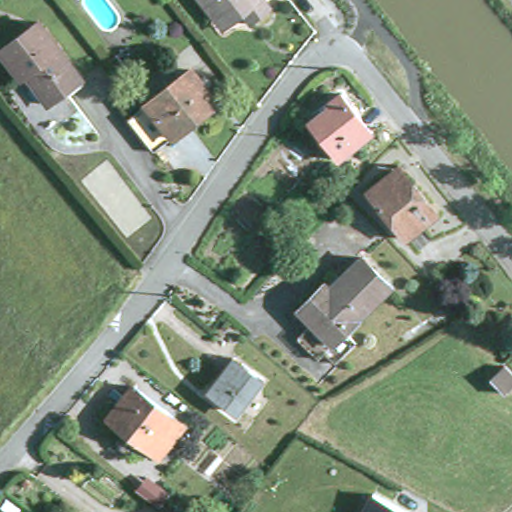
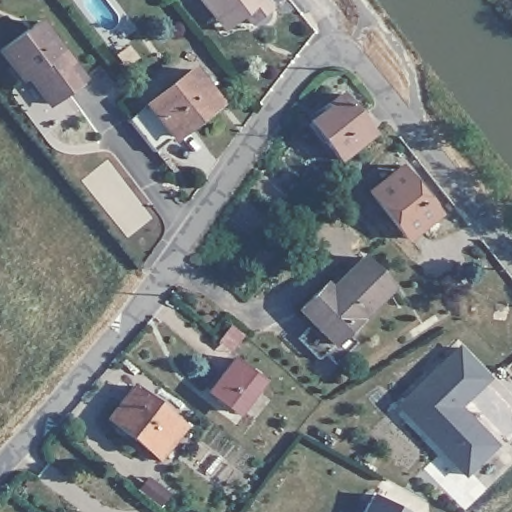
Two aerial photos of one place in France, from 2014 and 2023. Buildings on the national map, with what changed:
unchanged [(200,0),(264,0),(270,7),(249,22),(243,13),(222,29),(214,19),(200,0)]
unchanged [(0,52),(36,25),(79,81),(46,106),(30,85),(24,89),(19,83),(0,57),(0,52)]
unchanged [(196,71),(219,101),(158,151),(133,120),(196,71)]
unchanged [(311,122),(329,107),(328,105),(340,95),(369,132),(338,157),(311,122)]
unchanged [(368,187),(394,167),(407,185),(412,181),(434,211),(405,234),(368,187)]
unchanged [(394,285),(337,342),(302,307),(319,290),(326,282),(331,287),(364,256),(394,285)]
new [(499,445),(465,478),(396,406),(458,343),(491,378),(462,406),(499,445)]
unchanged [(236,414),(218,400),(209,393),(233,362),(241,368),(261,382),(236,414)]
demolished [(508,366),(512,371),(512,390),(508,394),(494,380),(508,366)]
unchanged [(129,402),(126,400),(135,388),(173,417),(166,427),(178,436),(161,457),(114,421),(129,402)]
unchanged [(358,512),(368,493),(407,512),(358,512)]

